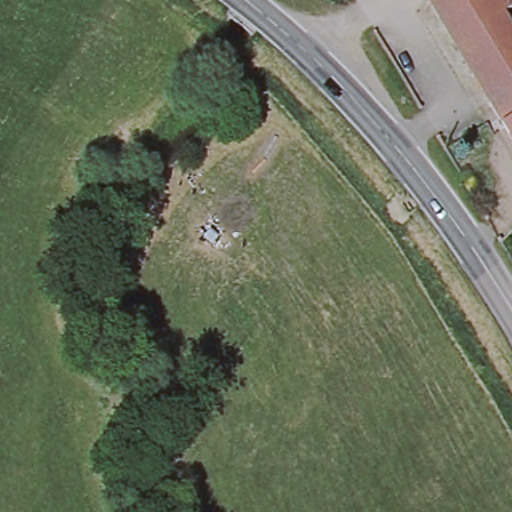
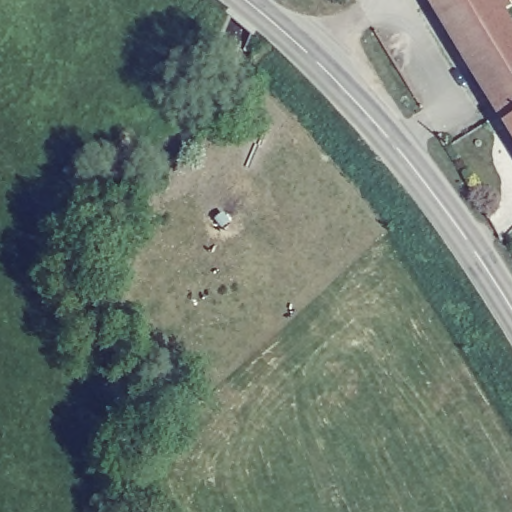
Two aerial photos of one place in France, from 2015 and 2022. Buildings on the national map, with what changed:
unchanged [(499,117),(428,0),(512,0),(512,109),(499,117)]
unchanged [(499,117),(512,109),(512,139),(499,117)]

